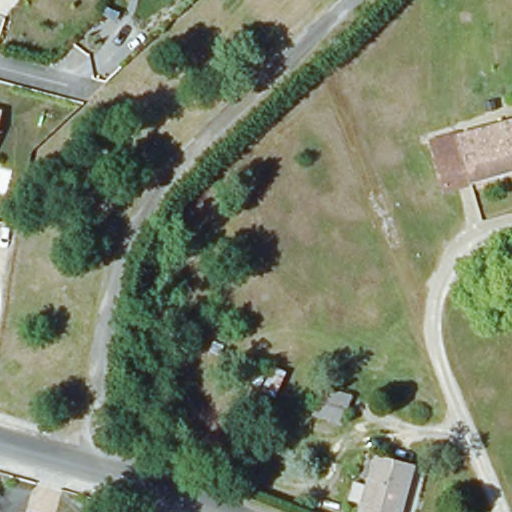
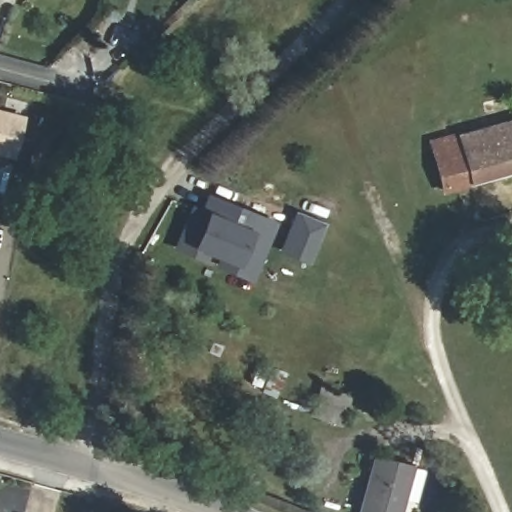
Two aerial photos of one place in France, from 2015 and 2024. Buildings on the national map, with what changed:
unchanged [(3,111),(0,125),(0,111),(3,111)]
unchanged [(431,143),(512,120),(512,171),(471,183),(443,190),(431,143)]
new [(204,252),(201,260),(174,249),(186,219),(189,210),(199,214),(206,197),(271,224),(257,258),(248,280),(215,266),(218,258),(204,252)]
new [(295,213),(322,224),(306,263),(278,251),(295,213)]
unchanged [(345,396),(337,424),(307,415),(316,387),(345,396)]
unchanged [(412,467),(399,512),(358,512),(375,455),(412,467)]

